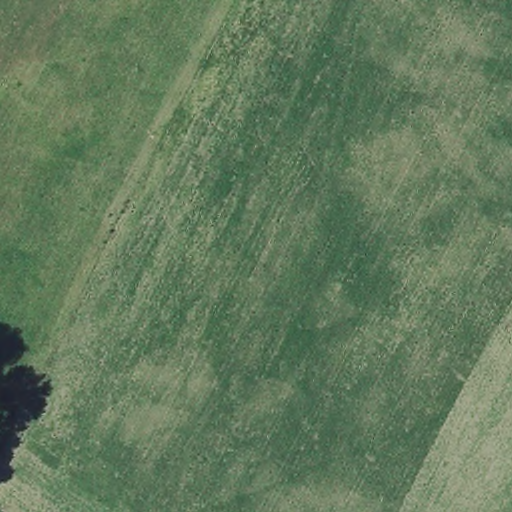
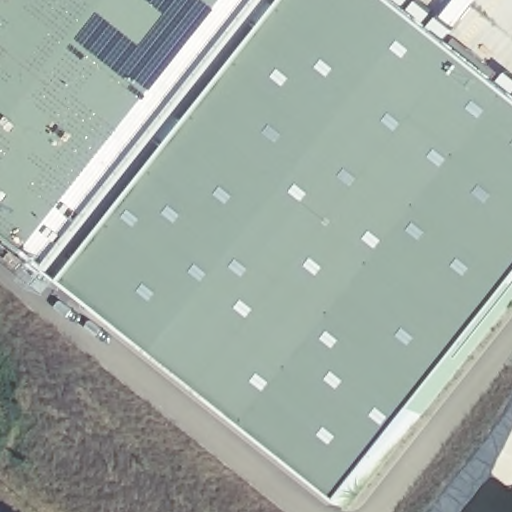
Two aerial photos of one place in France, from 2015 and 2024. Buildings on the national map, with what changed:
new [(408,0),(512,85),(512,327),(363,512),(358,512),(84,293),(320,0),(408,0)]

